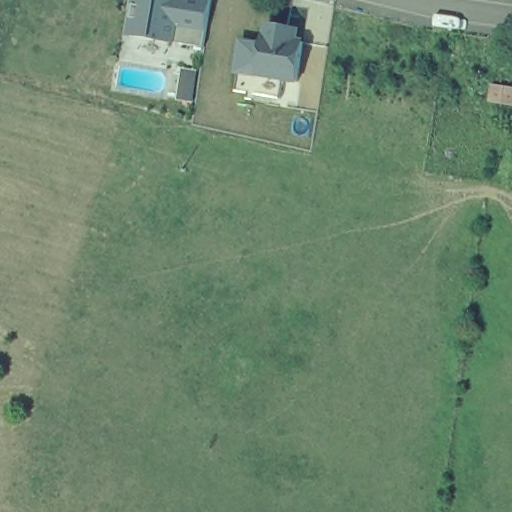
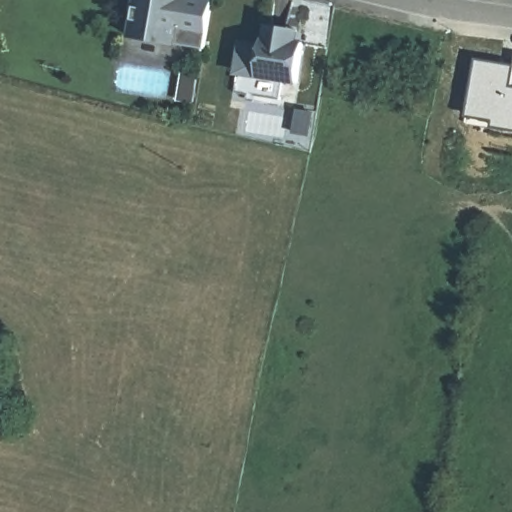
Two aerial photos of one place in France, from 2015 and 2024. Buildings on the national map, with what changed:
unchanged [(132,34),(136,0),(213,0),(208,45),(132,34)]
unchanged [(281,79),(283,97),(241,91),(244,53),(263,55),(266,35),(279,36),(279,27),(303,30),(302,37),(309,39),(306,80),(281,79)]
new [(512,64),(512,130),(466,121),(478,58),(512,64)]

